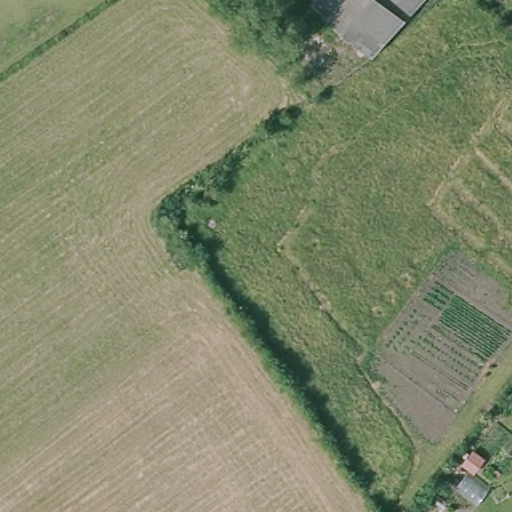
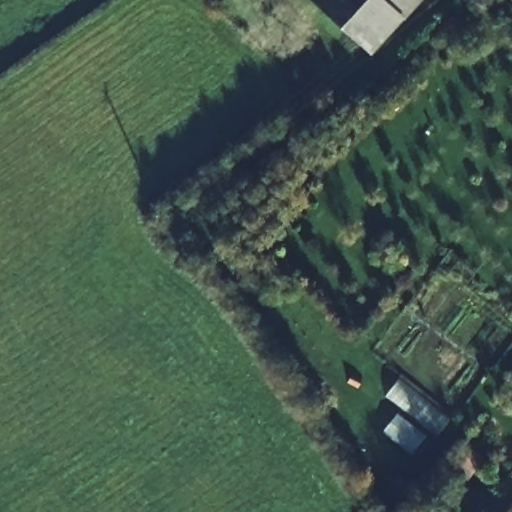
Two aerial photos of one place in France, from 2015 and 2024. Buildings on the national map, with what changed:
unchanged [(313,0),(418,0),(370,51),(313,0)]

